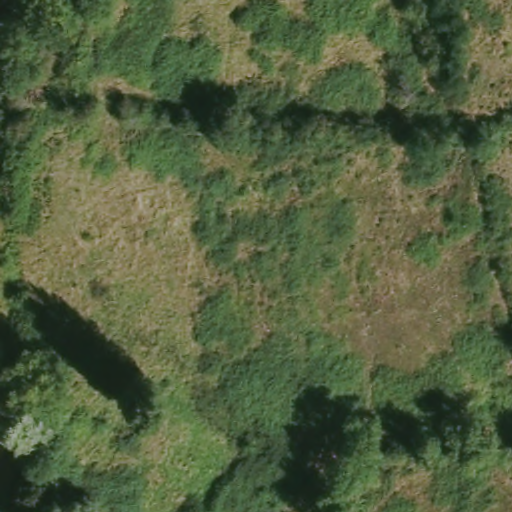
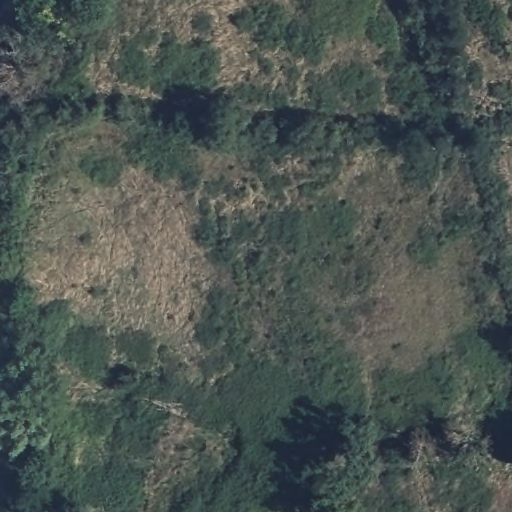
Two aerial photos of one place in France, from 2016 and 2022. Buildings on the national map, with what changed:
[]

